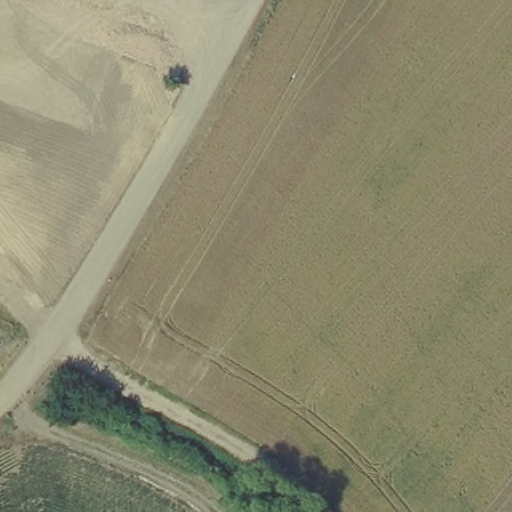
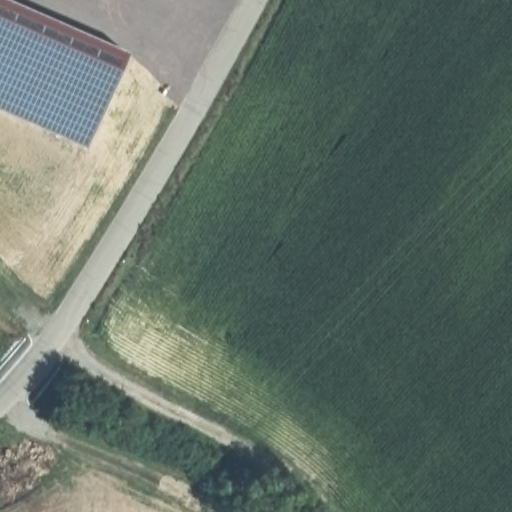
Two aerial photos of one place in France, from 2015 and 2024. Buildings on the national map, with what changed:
new [(92,148),(0,109),(0,0),(14,0),(134,54),(92,148)]

